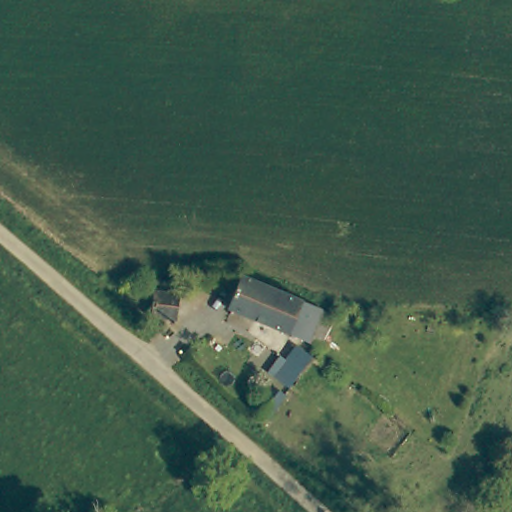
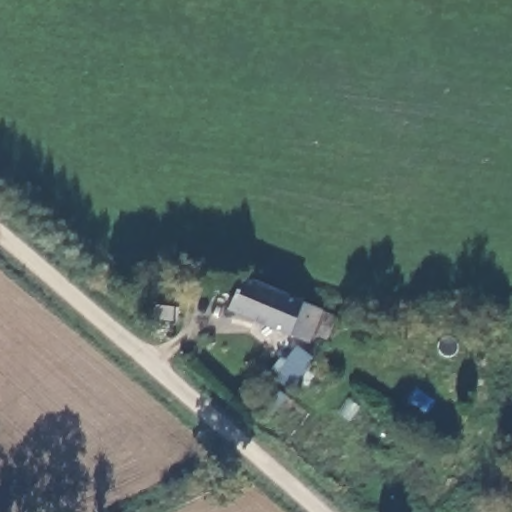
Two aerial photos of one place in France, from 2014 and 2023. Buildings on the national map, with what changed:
unchanged [(232,313),(242,288),(246,279),(330,308),(327,314),(338,318),(329,349),(232,313)]
unchanged [(151,317),(152,313),(137,310),(140,298),(153,299),(154,291),(178,297),(175,320),(151,317)]
unchanged [(288,361),(293,364),(304,349),(321,361),(299,392),(277,376),(288,361)]
unchanged [(278,386),(294,398),(276,422),(260,410),(278,386)]

